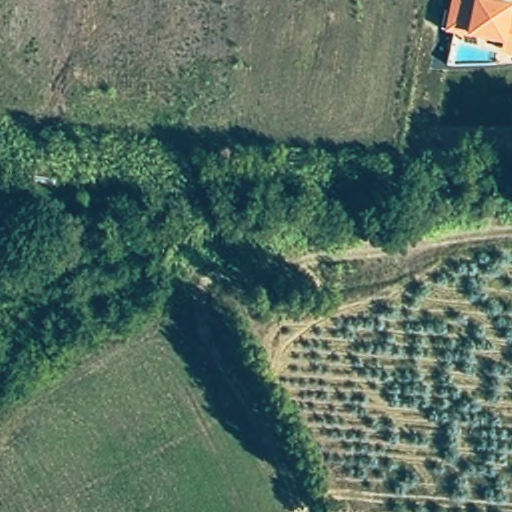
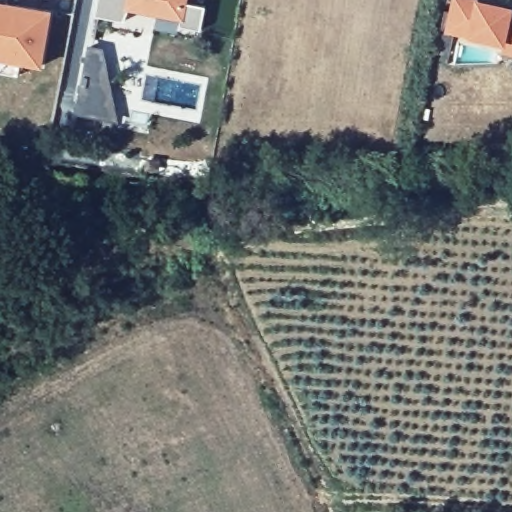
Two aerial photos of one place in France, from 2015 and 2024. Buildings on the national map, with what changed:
new [(187,0),(186,4),(204,8),(200,29),(179,24),(177,33),(153,27),(156,14),(125,8),(123,21),(95,16),(98,0),(187,0)]
unchanged [(503,54),(503,47),(445,32),(452,0),(481,0),(512,8),(512,56),(503,54)]
new [(42,68),(0,61),(0,1),(51,9),(42,68)]
new [(103,49),(118,124),(113,122),(110,131),(100,129),(102,119),(75,114),(87,45),(103,49)]

